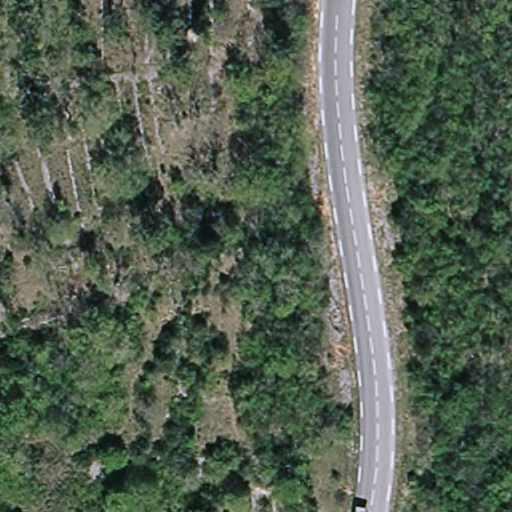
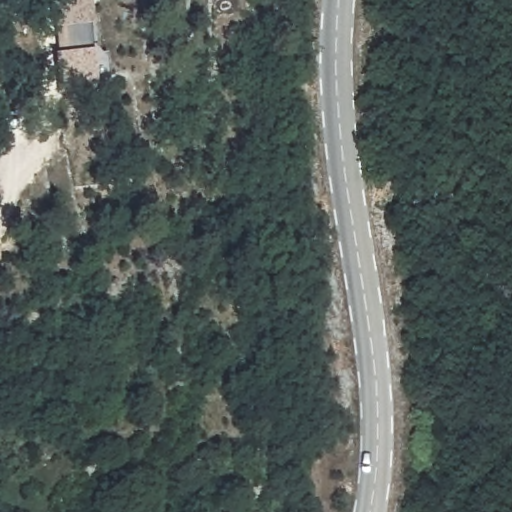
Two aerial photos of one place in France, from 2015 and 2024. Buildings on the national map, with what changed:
new [(97,52),(100,91),(60,95),(57,6),(64,5),(63,1),(75,0),(93,0),(95,27),(90,27),(92,52),(97,52)]
unchanged [(287,474),(285,497),(260,496),(261,472),(287,474)]

